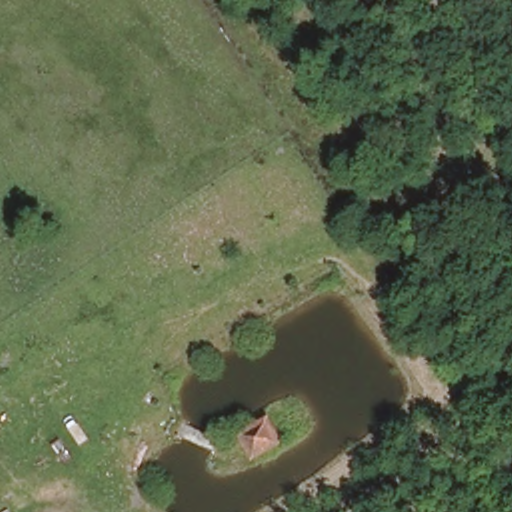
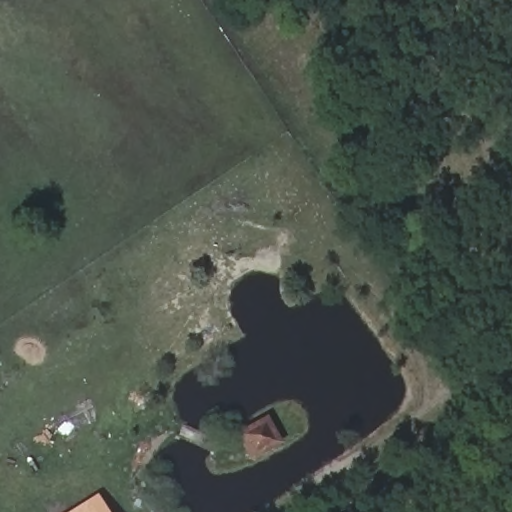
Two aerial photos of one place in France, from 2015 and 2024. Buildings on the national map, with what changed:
unchanged [(273,410),(292,447),(258,467),(240,430),(273,410)]
new [(98,494),(110,512),(70,512),(98,494)]

